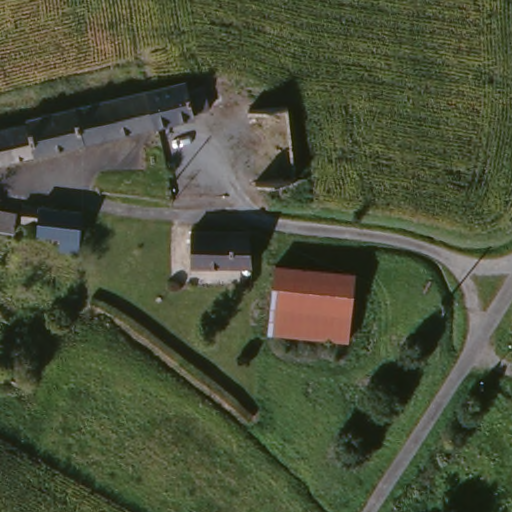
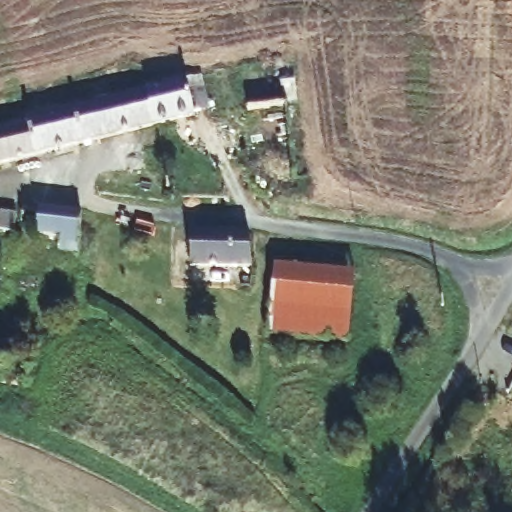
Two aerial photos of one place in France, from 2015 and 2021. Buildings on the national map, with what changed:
unchanged [(187,82),(189,89),(206,85),(211,111),(196,115),(197,119),(159,127),(151,91),(187,82)]
unchanged [(124,136),(116,99),(151,91),(159,127),(124,136)]
unchanged [(116,99),(124,136),(89,144),(83,107),(116,99)]
unchanged [(27,120),(83,107),(89,144),(0,166),(0,131),(28,125),(27,120)]
unchanged [(81,254),(60,252),(61,238),(38,235),(39,226),(22,224),(23,206),(41,208),(85,213),(81,254)]
unchanged [(0,213),(17,214),(15,235),(0,233),(0,213)]
unchanged [(191,268),(191,233),(251,233),(252,269),(191,268)]
unchanged [(356,275),(349,344),(270,336),(276,267),(356,275)]

